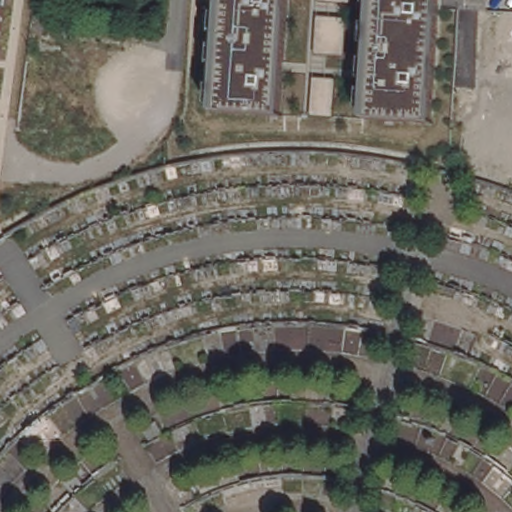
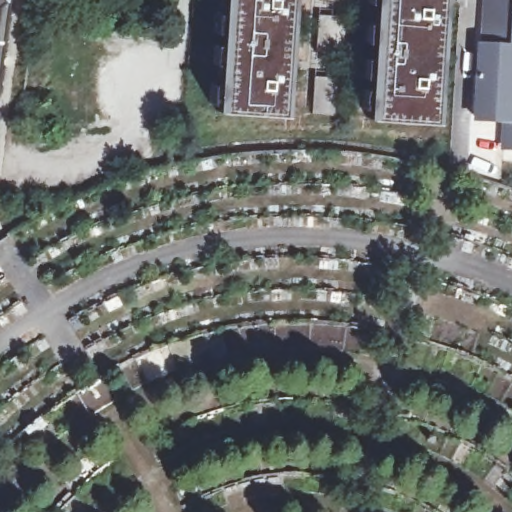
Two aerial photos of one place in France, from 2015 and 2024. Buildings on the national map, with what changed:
unchanged [(3,0),(0,26),(0,0),(3,0)]
unchanged [(221,110),(227,0),(290,0),(284,110),(221,110)]
unchanged [(318,0),(353,0),(353,1),(317,1),(318,0)]
unchanged [(378,0),(441,0),(433,121),(369,119),(378,0)]
new [(512,0),(512,150),(500,150),(501,123),(472,121),(481,0),(512,0)]
unchanged [(314,53),(316,15),(346,17),(345,55),(314,53)]
unchanged [(312,115),(313,75),(336,76),(335,115),(312,115)]

